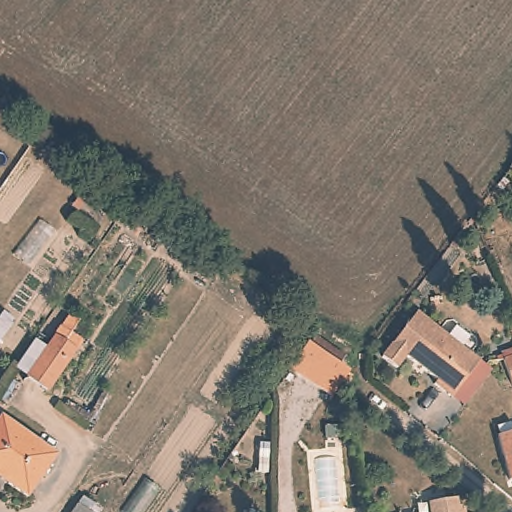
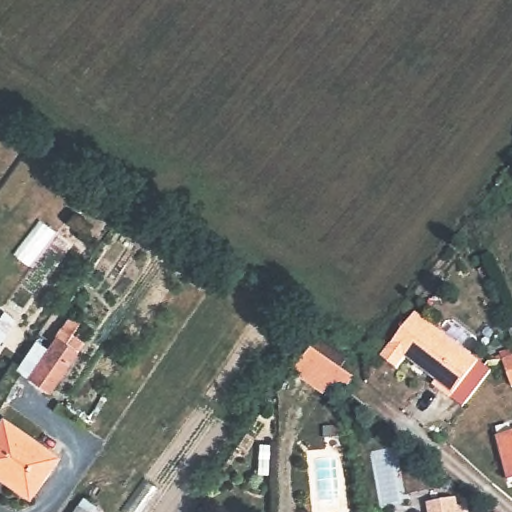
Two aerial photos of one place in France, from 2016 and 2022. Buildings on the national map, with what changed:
unchanged [(0,344),(0,315),(6,307),(19,319),(0,344)]
unchanged [(85,319),(74,335),(85,342),(50,395),(14,370),(36,338),(47,345),(71,310),(85,319)]
unchanged [(456,392),(406,354),(398,366),(382,355),(415,311),(480,359),(456,392)]
unchanged [(339,389),(330,398),(286,370),(303,342),(310,347),(317,336),(344,357),(340,365),(351,371),(340,387),(339,389)]
unchanged [(510,374),(503,343),(512,342),(512,373),(510,374)]
unchanged [(57,448),(27,491),(6,477),(0,472),(0,410),(1,409),(57,448)]
unchanged [(507,477),(496,433),(512,429),(512,476),(507,477)]
unchanged [(432,501),(456,496),(457,505),(463,505),(464,512),(433,512),(432,501)]
unchanged [(88,512),(75,512),(79,506),(88,512)]

